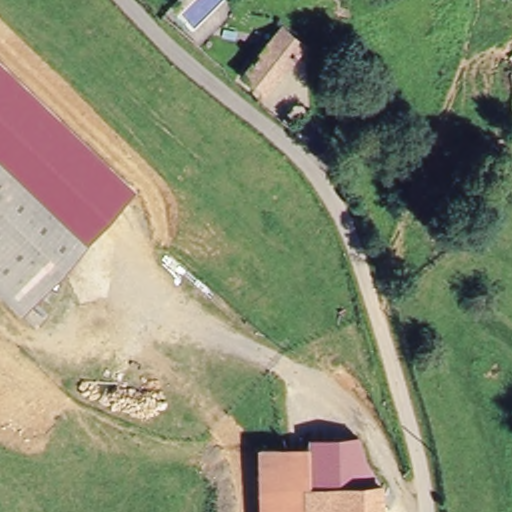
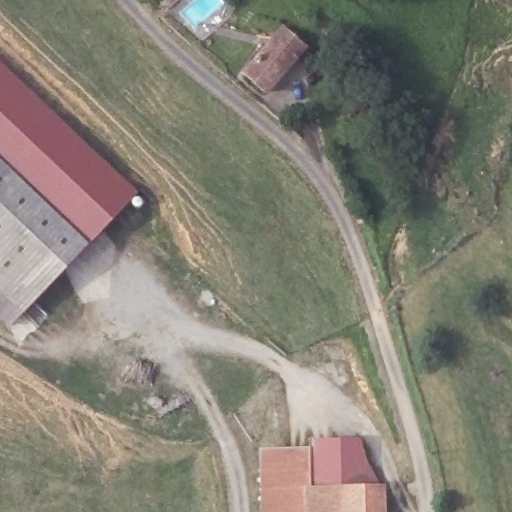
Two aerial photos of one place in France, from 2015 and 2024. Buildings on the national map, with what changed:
unchanged [(270,95),(245,76),(285,28),(307,48),(270,95)]
unchanged [(0,62),(137,193),(101,232),(0,137),(0,62)]
unchanged [(0,289),(0,138),(102,234),(26,313),(0,289)]
unchanged [(382,492),(378,493),(338,497),(307,499),(306,454),(309,445),(357,443),(382,492)]
unchanged [(306,454),(307,499),(338,497),(339,512),(260,512),(258,456),(306,454)]
unchanged [(339,512),(338,497),(378,493),(380,512),(339,512)]

